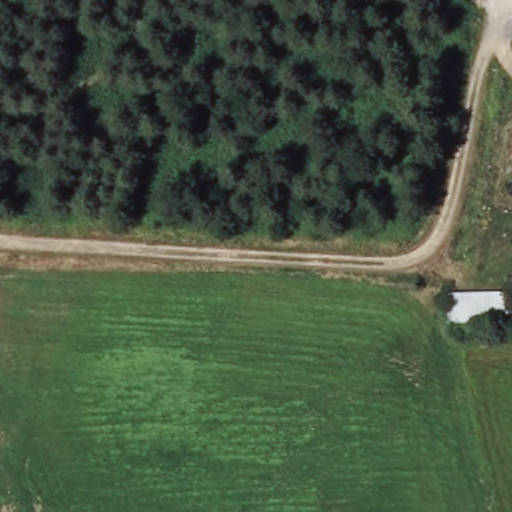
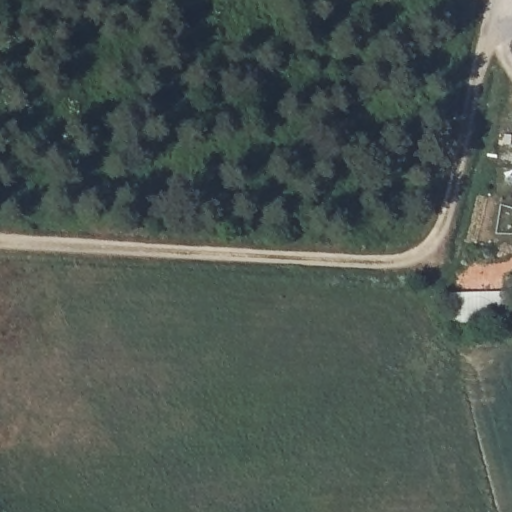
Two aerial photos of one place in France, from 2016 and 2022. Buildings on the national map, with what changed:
unchanged [(512,294),(512,323),(455,325),(452,294),(512,294)]

